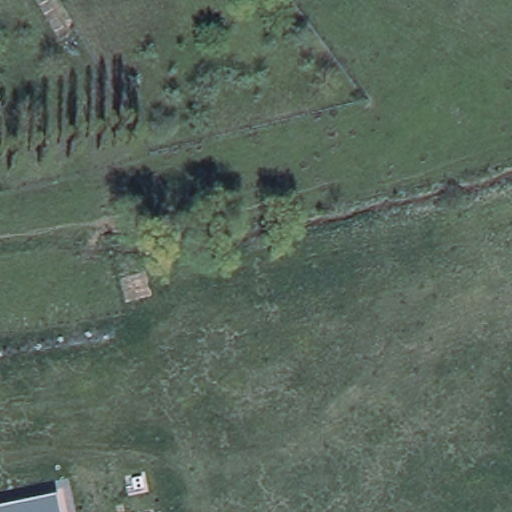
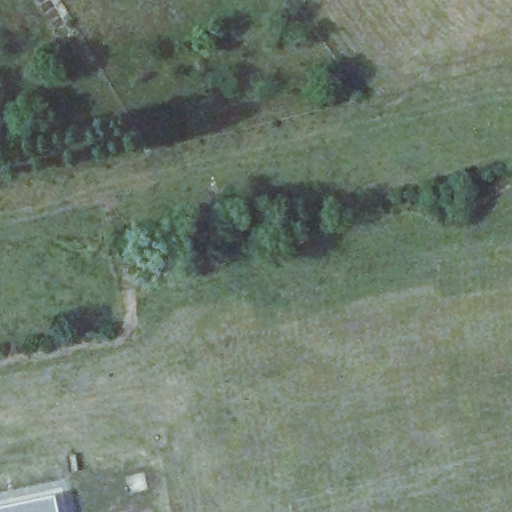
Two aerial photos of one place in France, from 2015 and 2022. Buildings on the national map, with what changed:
unchanged [(61,512),(0,512),(0,508),(57,496),(61,512)]

